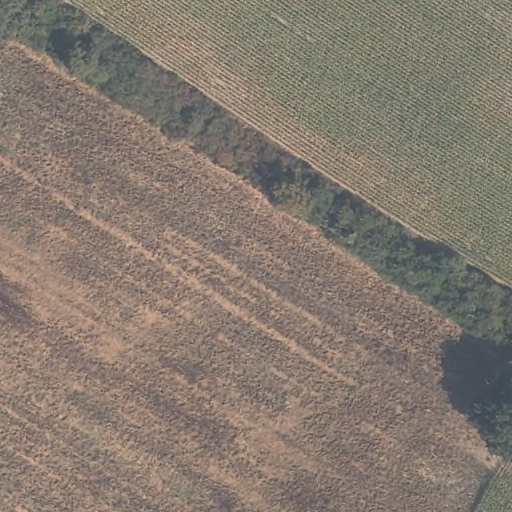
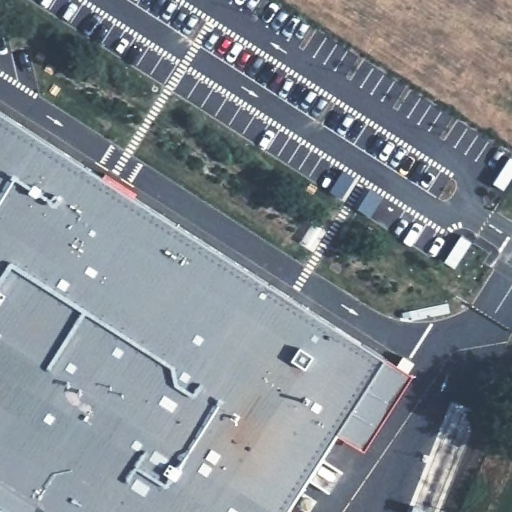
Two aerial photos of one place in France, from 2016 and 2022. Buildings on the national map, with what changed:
new [(412,374),(361,453),(336,439),(289,512),(0,512),(0,111),(386,359),(412,374)]

